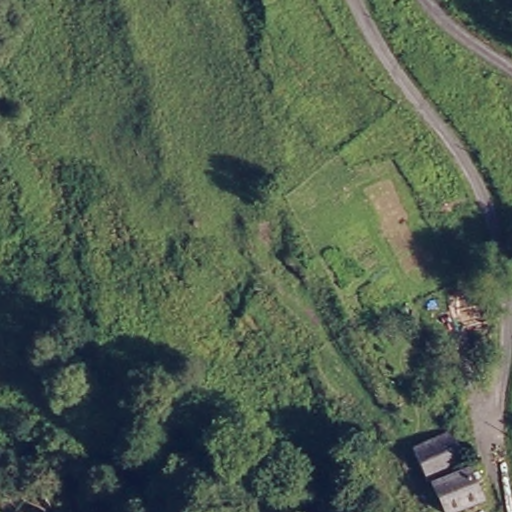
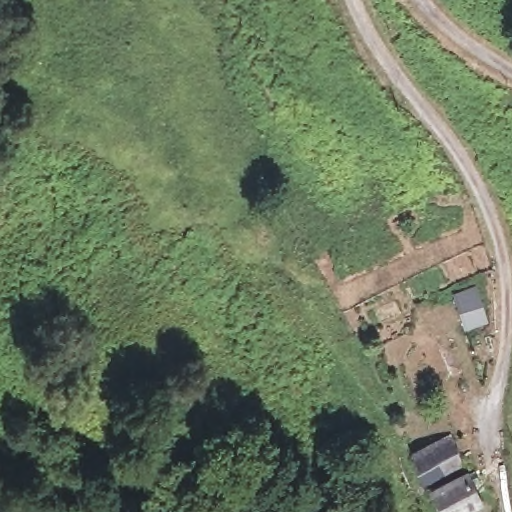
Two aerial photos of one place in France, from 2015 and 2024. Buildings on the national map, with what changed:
unchanged [(456,439),(471,470),(419,492),(406,463),(456,439)]
unchanged [(482,512),(436,512),(430,500),(476,478),(490,508),(482,512)]

